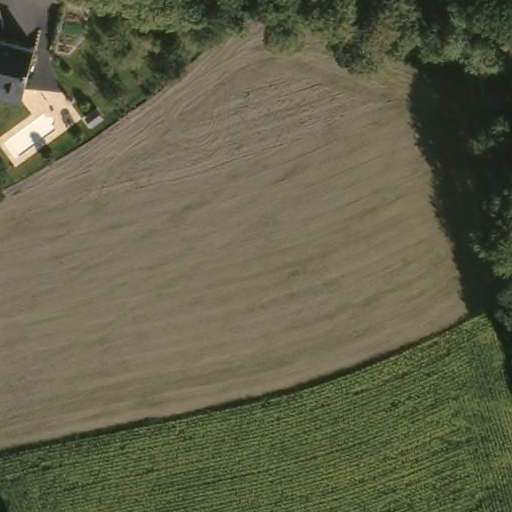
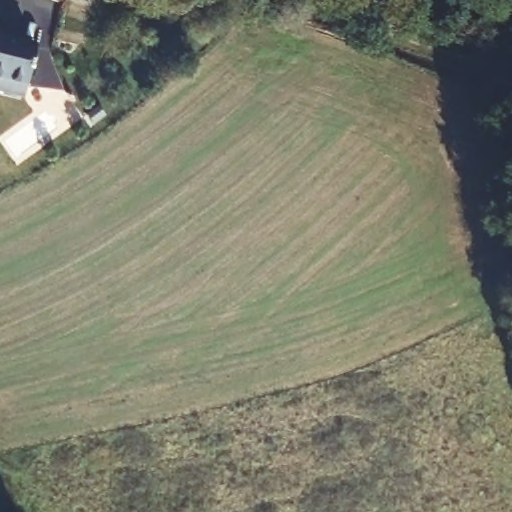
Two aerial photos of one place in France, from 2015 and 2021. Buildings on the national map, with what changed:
unchanged [(0,95),(0,38),(35,46),(24,88),(21,100),(0,95)]

